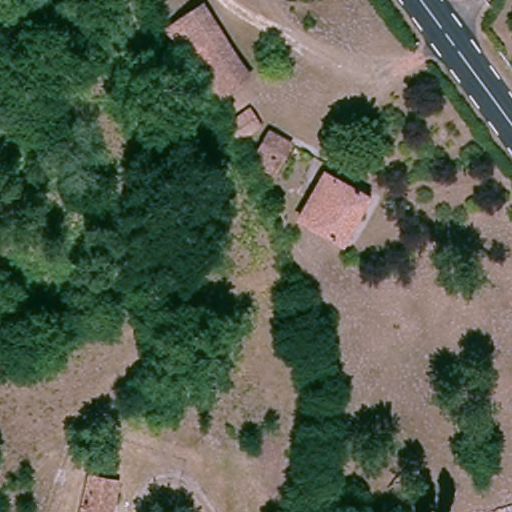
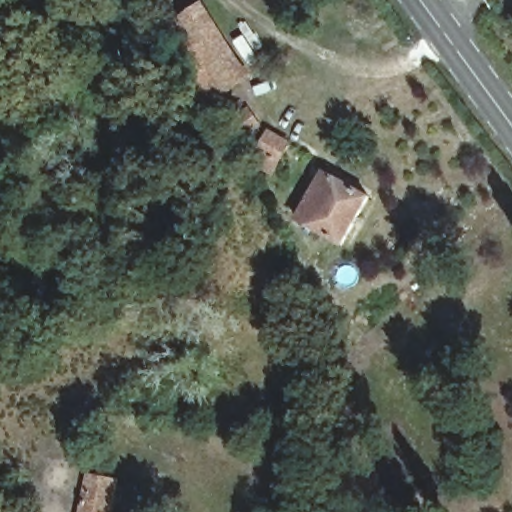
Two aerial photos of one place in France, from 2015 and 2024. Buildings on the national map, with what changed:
unchanged [(202,3),(248,75),(212,100),(167,27),(202,3)]
unchanged [(247,143),(235,126),(252,113),(263,130),(247,143)]
unchanged [(276,170),(256,162),(264,133),(284,139),(276,170)]
unchanged [(340,247),(296,219),(327,172),(368,199),(340,247)]
unchanged [(121,479),(113,512),(81,512),(91,474),(121,479)]

